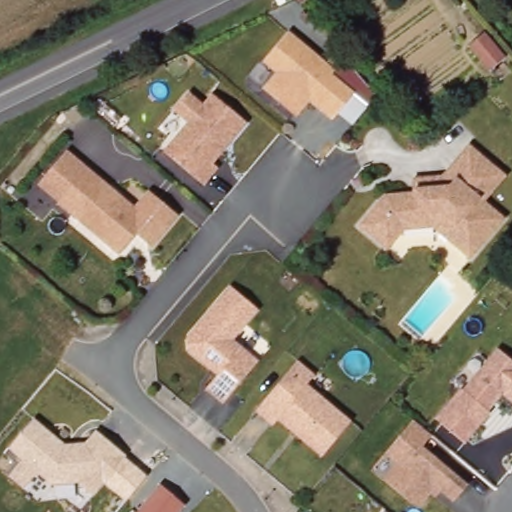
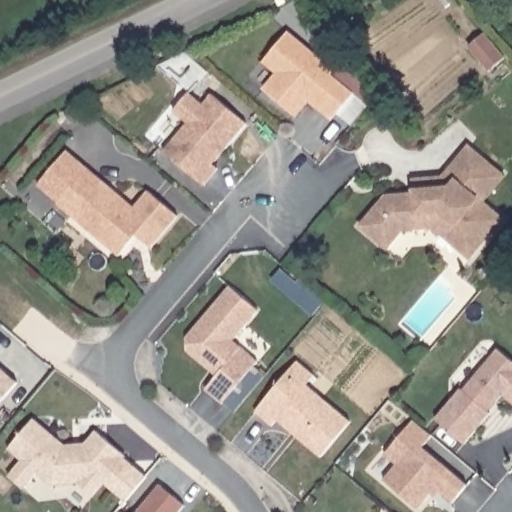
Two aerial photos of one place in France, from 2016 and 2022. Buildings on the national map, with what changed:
unchanged [(267,86),(281,71),(267,60),(292,31),(337,69),(333,72),(356,92),(335,117),(312,97),(307,97),(296,111),(267,86)]
unchanged [(484,34),(505,59),(490,72),(469,46),(484,34)]
unchanged [(193,119),(178,107),(193,89),(208,101),(217,90),(252,119),(218,160),(223,164),(209,181),(169,147),(193,119)]
unchanged [(390,191),(419,188),(419,185),(419,174),(448,172),(475,142),(499,163),(510,172),(489,198),(508,216),(475,255),(437,222),(408,224),(405,228),(392,243),(365,221),(378,206),(390,191)]
unchanged [(148,191),(178,216),(151,248),(136,236),(118,255),(36,186),(68,149),(134,206),(148,191)]
unchanged [(193,347),(192,334),(235,282),(263,307),(238,337),(263,357),(228,400),(211,386),(223,372),(209,361),(193,347)]
unchanged [(470,390),(505,349),(512,355),(512,397),(509,395),(504,401),(499,399),(492,408),(497,412),(472,443),(443,419),(468,388),(470,390)]
unchanged [(300,358),(316,372),(308,381),(352,417),(323,452),(280,416),(275,422),(258,408),(300,358)]
new [(19,382),(0,404),(0,365),(19,382)]
unchanged [(387,450),(415,415),(427,424),(434,431),(424,442),(442,457),(470,480),(455,497),(438,483),(427,497),(413,497),(386,475),(399,460),(387,450)]
unchanged [(127,455),(93,495),(79,483),(52,487),(37,472),(23,487),(8,475),(20,460),(9,448),(35,418),(65,444),(85,442),(97,430),(127,455)]
unchanged [(146,476),(126,501),(103,482),(127,455),(146,476)]
unchanged [(180,512),(135,512),(159,483),(186,505),(180,512)]

